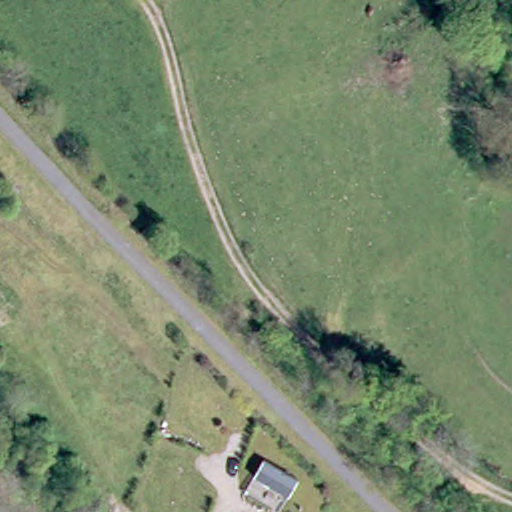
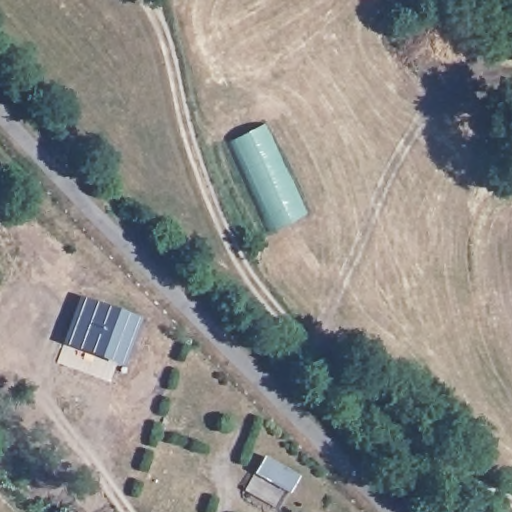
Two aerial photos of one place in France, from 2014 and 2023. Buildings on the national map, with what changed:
new [(263,124),(306,213),(272,230),(230,140),(263,124)]
new [(80,296),(140,320),(122,367),(62,343),(80,296)]
unchanged [(263,455),(300,477),(290,495),(253,472),(263,455)]

